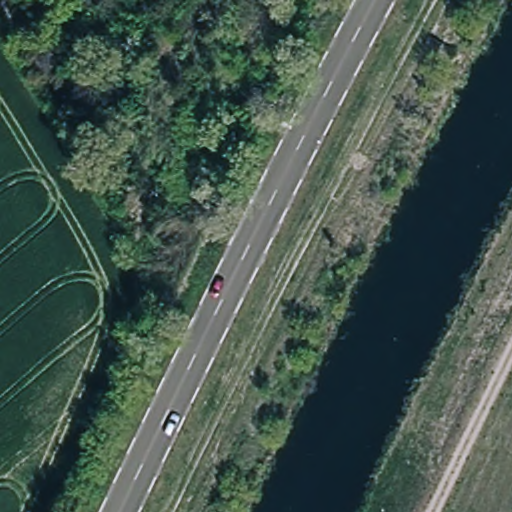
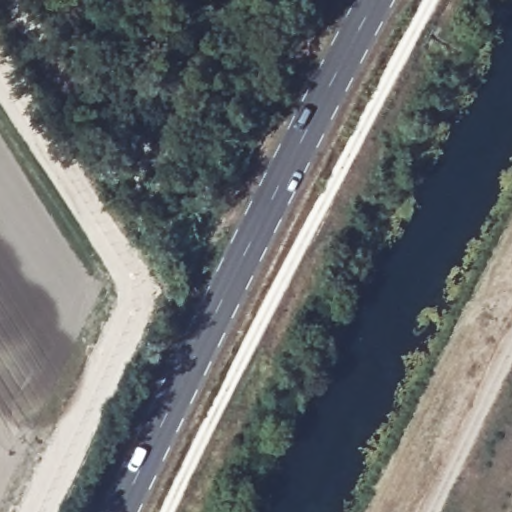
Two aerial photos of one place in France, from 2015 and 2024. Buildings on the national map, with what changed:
unchanged [(100,94),(99,95),(83,105),(66,81),(83,70),(100,94)]

